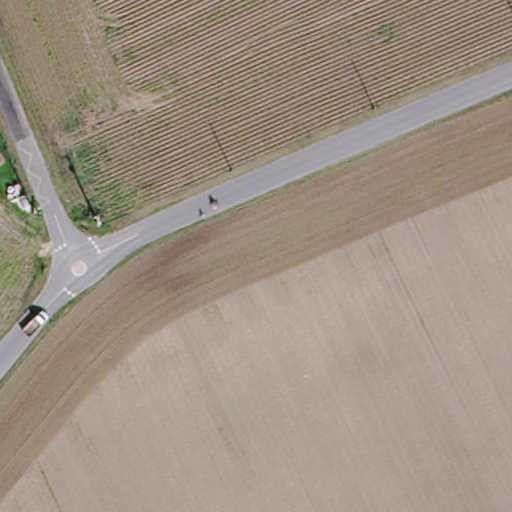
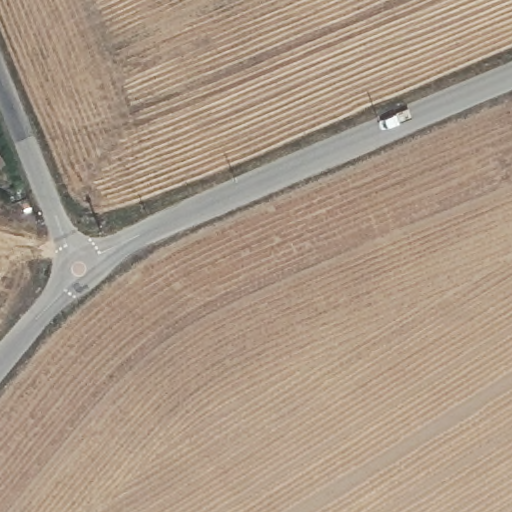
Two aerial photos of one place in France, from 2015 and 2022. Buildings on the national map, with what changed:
unchanged [(0,156),(7,165),(0,170),(0,156)]

